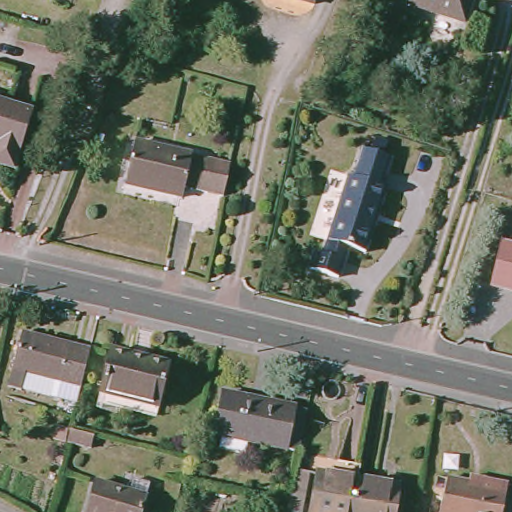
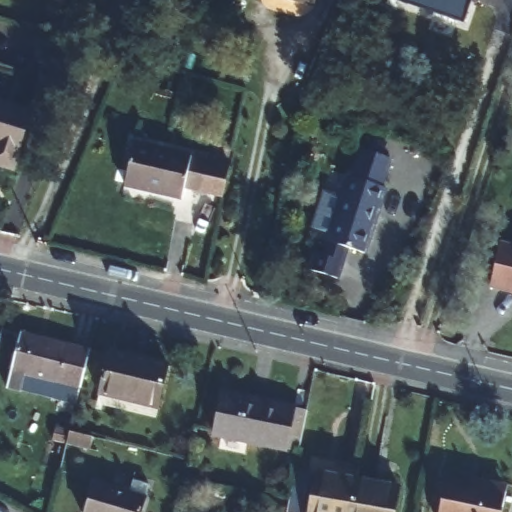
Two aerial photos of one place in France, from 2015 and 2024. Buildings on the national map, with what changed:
unchanged [(309,1),(305,0),(310,0),(309,1)]
unchanged [(461,16),(411,0),(465,0),(461,16)]
unchanged [(28,105),(13,160),(0,156),(0,97),(28,105)]
unchanged [(221,190),(178,180),(176,190),(120,177),(130,135),(228,160),(221,190)]
unchanged [(354,235),(345,265),(318,257),(323,240),(331,243),(335,229),(354,166),(359,167),(363,155),(367,140),(393,149),(389,164),(384,176),(391,179),(371,240),(354,235)]
unchanged [(503,250),(507,240),(512,242),(512,290),(493,283),(503,250)]
unchanged [(79,380),(53,374),(48,391),(6,381),(19,322),(88,341),(79,380)]
unchanged [(164,359),(155,400),(100,385),(110,346),(164,359)]
unchanged [(289,443),(243,436),(239,447),(214,445),(216,429),(207,427),(214,386),(298,403),(289,443)]
unchanged [(318,468),(331,471),(335,455),(359,459),(356,473),(356,476),(349,512),(287,512),(291,490),(294,469),(316,471),(318,468)]
unchanged [(498,512),(464,512),(445,508),(452,471),(504,481),(498,512)]
unchanged [(396,484),(391,512),(349,512),(356,476),(396,484)]
unchanged [(128,478),(143,482),(136,512),(83,512),(90,480),(125,487),(128,478)]

